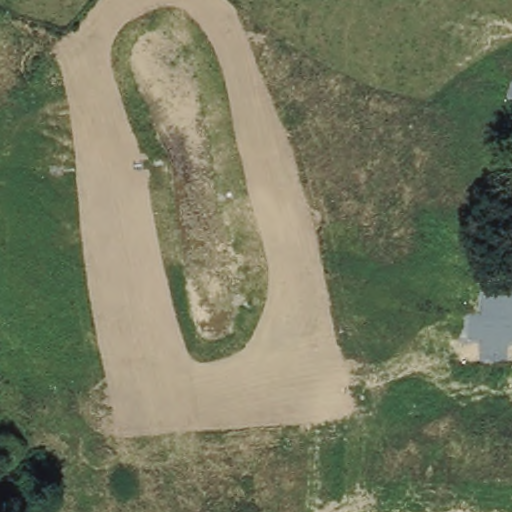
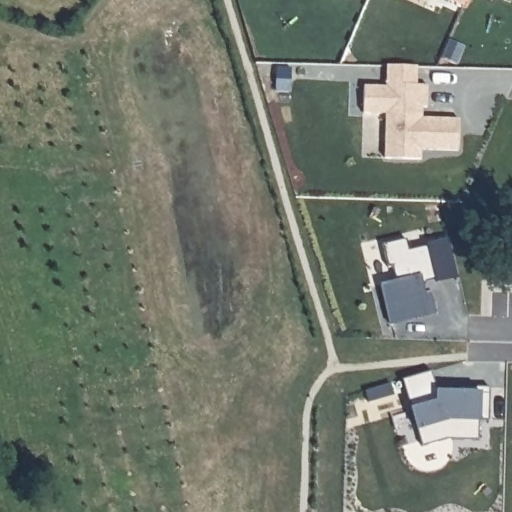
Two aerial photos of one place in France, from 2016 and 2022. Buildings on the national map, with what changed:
new [(427,107),(422,107),(422,117),(459,118),(460,149),(421,149),(421,157),(385,157),(385,113),(362,113),(363,86),(387,86),(387,65),(417,65),(417,84),(428,85),(427,107)]
new [(396,280),(392,266),(387,267),(382,243),(406,238),(408,249),(427,245),(427,243),(451,237),(459,276),(436,281),(435,279),(426,281),(422,286),(424,292),(429,291),(434,313),(390,323),(381,284),(396,280)]
new [(431,370),(437,391),(459,392),(459,386),(490,386),(489,420),(469,420),(468,430),(436,429),(418,434),(402,379),(431,370)]

